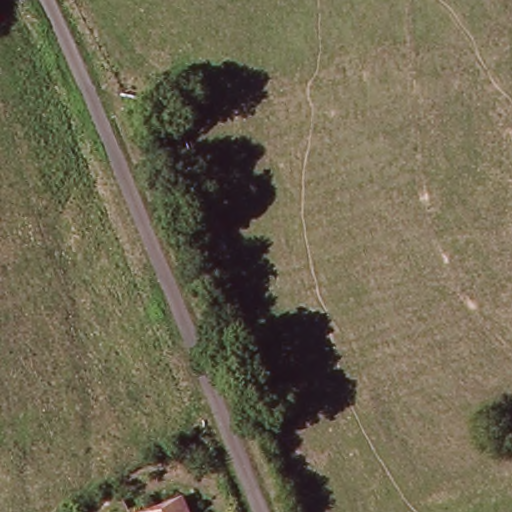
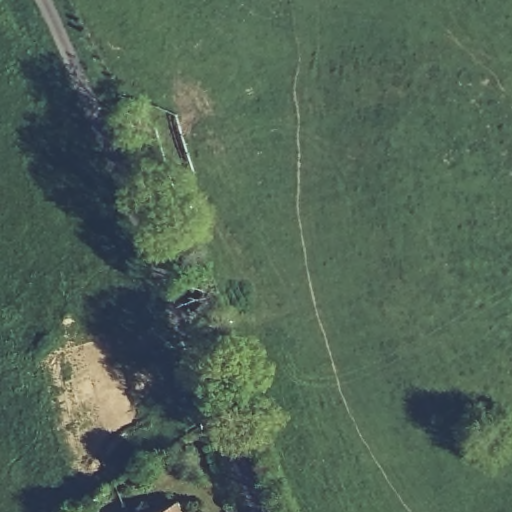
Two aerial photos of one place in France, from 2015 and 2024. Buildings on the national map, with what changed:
unchanged [(183,512),(151,512),(178,500),(183,512)]

